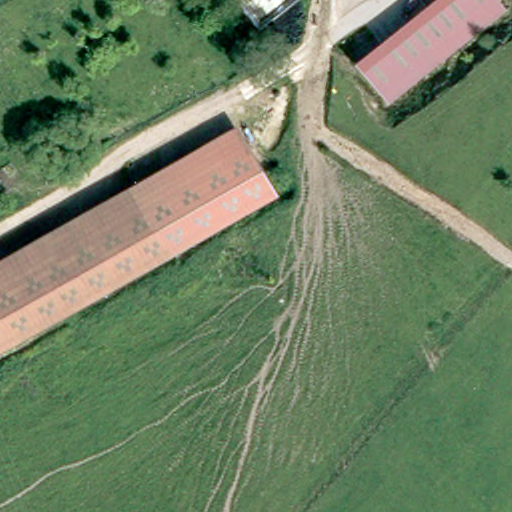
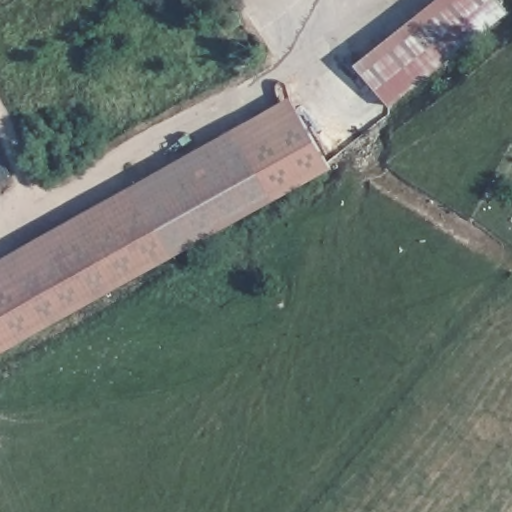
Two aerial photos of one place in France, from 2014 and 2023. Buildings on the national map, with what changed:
unchanged [(360,65),(436,0),(500,0),(508,10),(393,104),(360,65)]
new [(291,96),(331,169),(279,198),(238,127),(291,96)]
unchanged [(238,127),(279,198),(0,353),(0,259),(238,127)]

